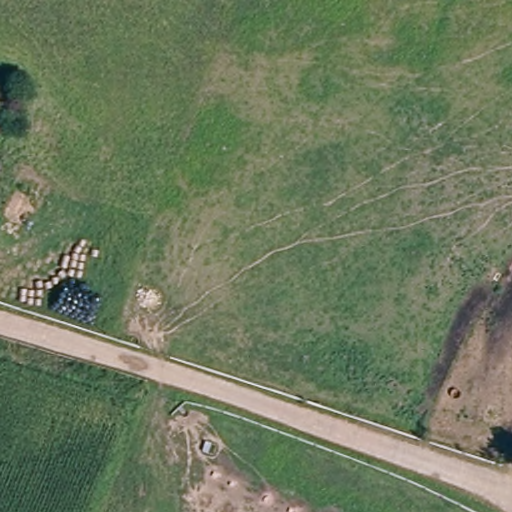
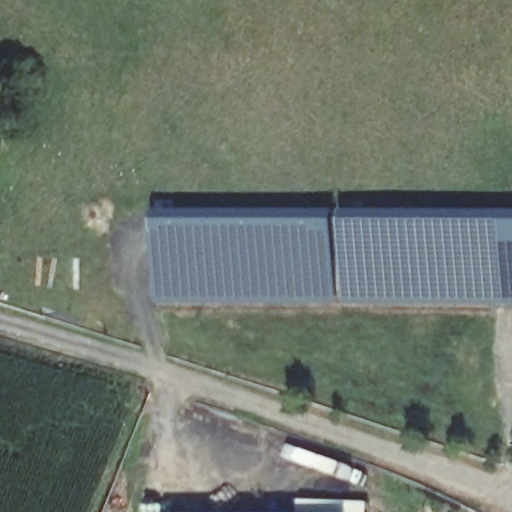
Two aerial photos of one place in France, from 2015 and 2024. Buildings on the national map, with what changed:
new [(341,212),(340,306),(155,305),(157,212),(341,212)]
new [(512,306),(344,305),(346,213),(512,213),(512,306)]

